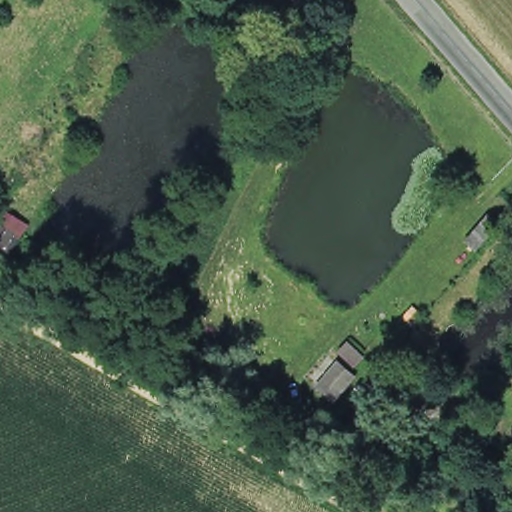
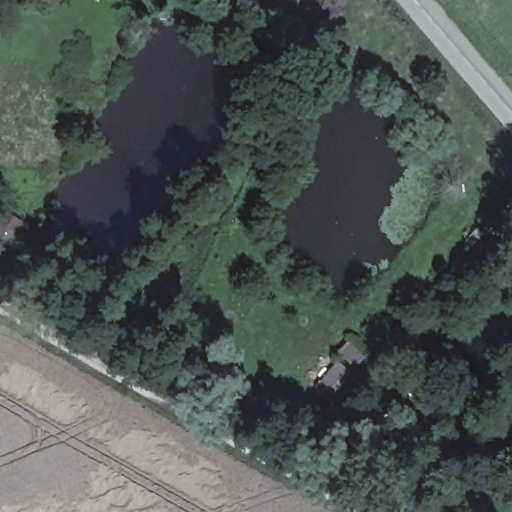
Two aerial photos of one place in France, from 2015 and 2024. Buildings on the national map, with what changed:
unchanged [(366,385),(347,408),(320,391),(340,366),(366,385)]

